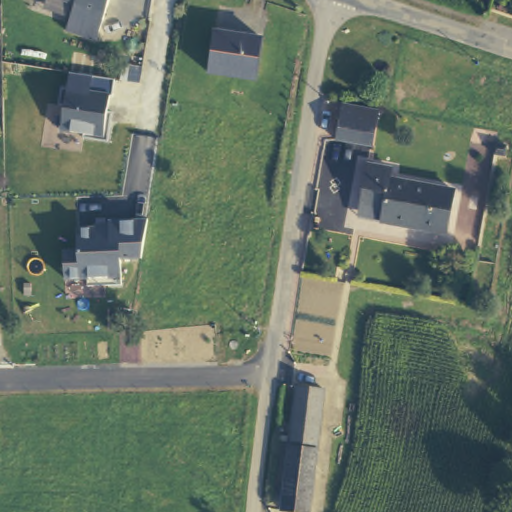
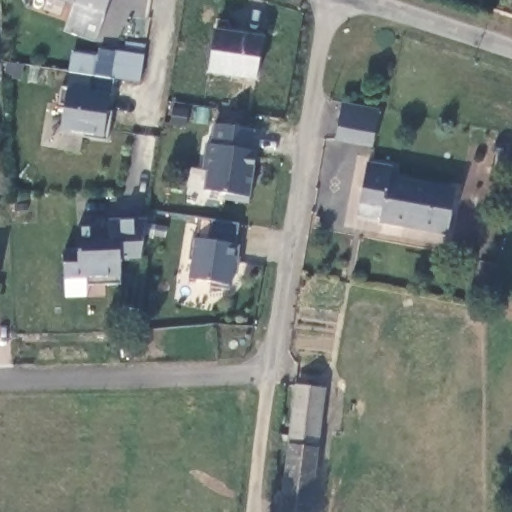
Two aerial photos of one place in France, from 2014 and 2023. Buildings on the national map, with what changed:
unchanged [(71,10),(74,3),(64,0),(108,0),(101,19),(95,38),(66,29),(71,10)]
unchanged [(263,38),(258,79),(209,72),(215,31),(263,38)]
unchanged [(108,113),(113,113),(109,143),(83,139),(84,135),(61,131),(63,106),(59,105),(61,88),(66,88),(70,71),(115,79),(108,113)]
unchanged [(378,107),(372,145),(337,139),(345,101),(378,107)]
new [(211,144),(216,145),(220,124),(258,130),(255,151),(260,151),(253,202),(229,199),(230,194),(209,191),(212,171),(208,170),(211,144)]
unchanged [(507,143),(506,154),(495,153),(496,143),(507,143)]
unchanged [(361,204),(369,164),(392,168),(391,178),(455,189),(448,232),(382,220),(359,216),(361,204)]
unchanged [(140,259),(121,259),(121,286),(86,287),(86,280),(64,280),(63,251),(76,251),(76,227),(96,226),(96,223),(107,224),(107,220),(148,218),(140,259)]
new [(196,238),(201,239),(204,218),(244,224),(241,245),(244,245),(242,262),(238,262),(234,290),(214,287),(215,282),(195,279),(198,261),(193,260),(196,238)]
unchanged [(325,389),(310,512),(282,509),(298,385),(325,389)]

